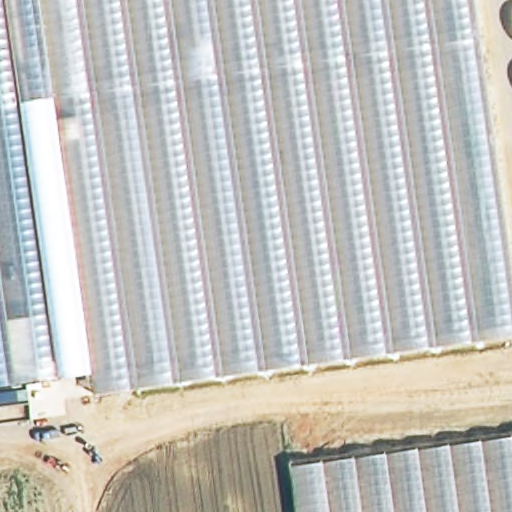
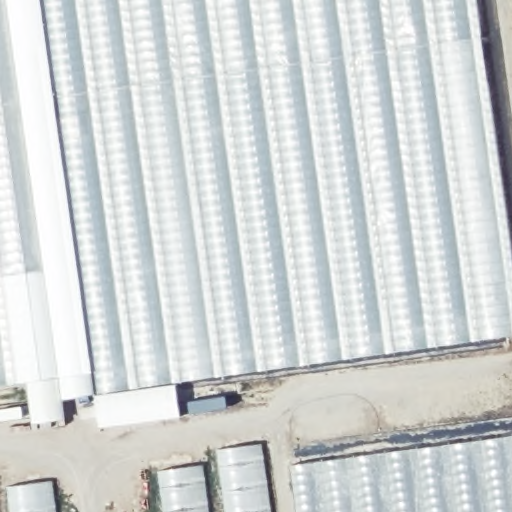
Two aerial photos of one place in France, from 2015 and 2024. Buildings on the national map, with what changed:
unchanged [(512,335),(362,356),(94,392),(93,374),(0,387),(0,0),(472,0),(512,311),(512,335)]
new [(225,395),(227,409),(190,415),(188,401),(225,395)]
unchanged [(512,437),(512,512),(295,512),(289,466),(423,449),(512,437)]
new [(156,468),(258,442),(268,512),(159,512),(156,468)]
new [(52,478),(57,512),(0,512),(0,485),(52,478)]

